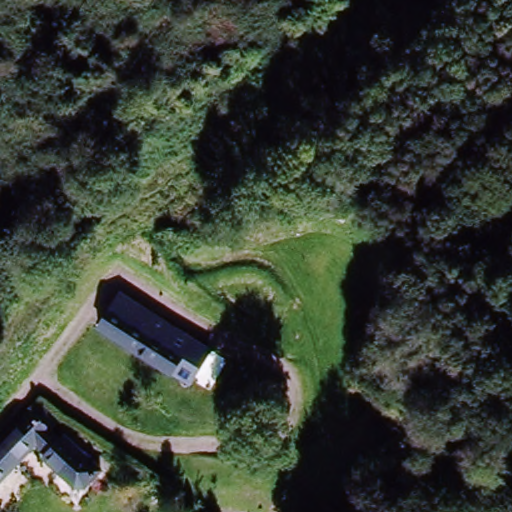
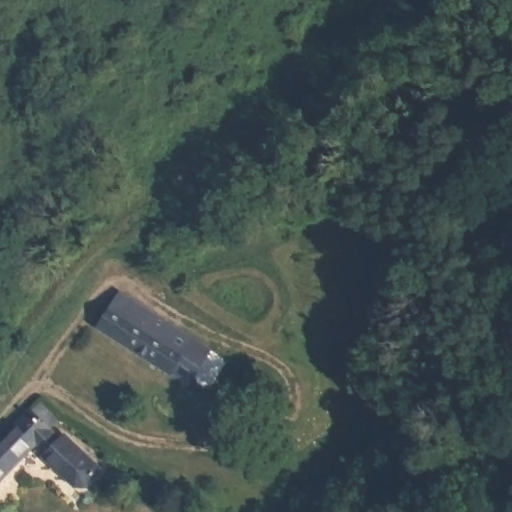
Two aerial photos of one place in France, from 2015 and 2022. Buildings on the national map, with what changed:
unchanged [(212,377),(188,366),(182,378),(99,331),(112,307),(123,292),(147,306),(141,321),(195,351),(219,362),(212,377)]
unchanged [(73,425),(63,437),(73,447),(58,461),(46,448),(9,483),(1,475),(0,473),(0,438),(45,397),(73,425)]
unchanged [(73,447),(75,443),(111,480),(94,498),(85,496),(54,465),(58,461),(73,447)]

